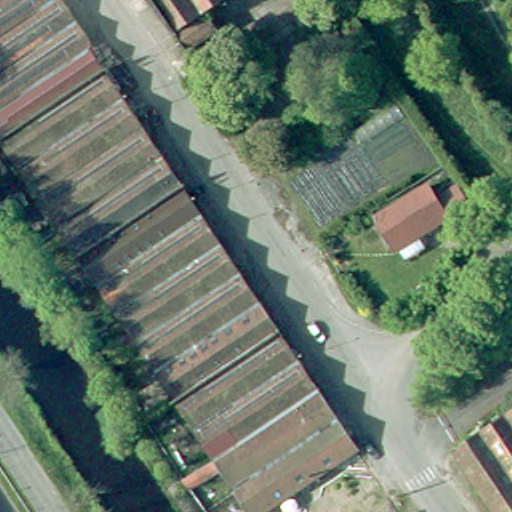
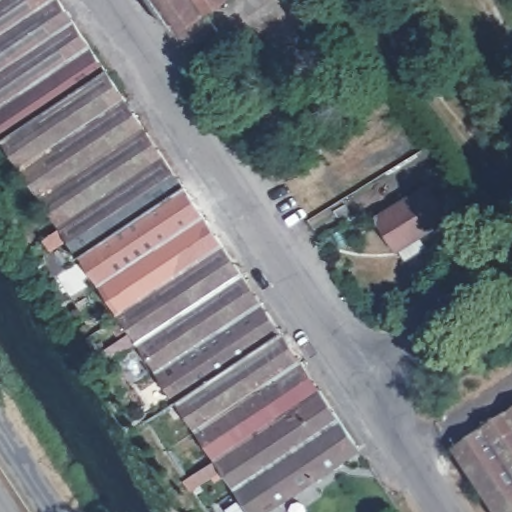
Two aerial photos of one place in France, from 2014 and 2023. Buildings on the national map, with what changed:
unchanged [(0,0),(61,0),(115,78),(10,147),(0,132),(0,0)]
unchanged [(217,31),(186,52),(153,0),(222,0),(205,11),(217,31)]
unchanged [(10,147),(115,78),(190,193),(86,262),(10,147)]
unchanged [(430,183),(438,194),(456,183),(474,207),(397,254),(375,217),(430,183)]
unchanged [(86,262),(190,193),(247,280),(143,348),(86,262)]
unchanged [(143,348),(247,280),(266,309),(163,378),(143,348)]
unchanged [(163,378),(266,309),(288,339),(185,409),(163,378)]
unchanged [(222,466),(185,409),(288,339),(328,397),(222,466)]
unchanged [(222,466),(328,397),(363,452),(283,505),(287,512),(253,512),(222,466)]
unchanged [(467,448),(512,417),(512,512),(510,512),(467,448)]

